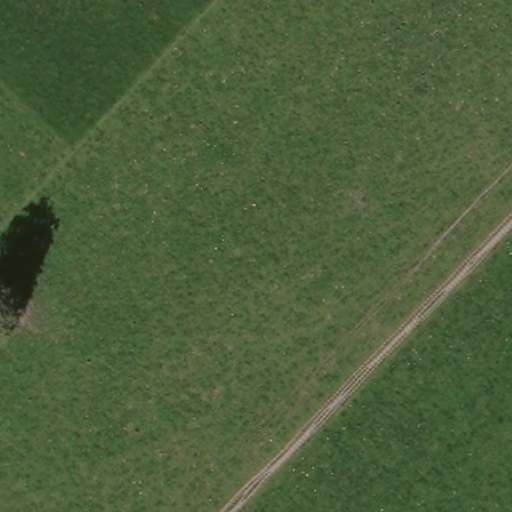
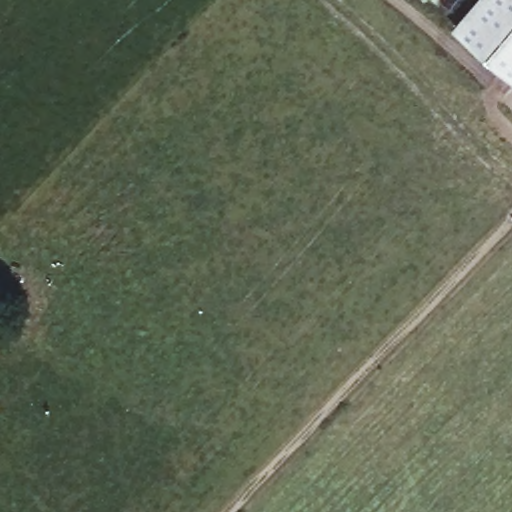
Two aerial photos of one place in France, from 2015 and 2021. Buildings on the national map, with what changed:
new [(512,0),(512,69),(453,17),(467,0),(512,0)]

